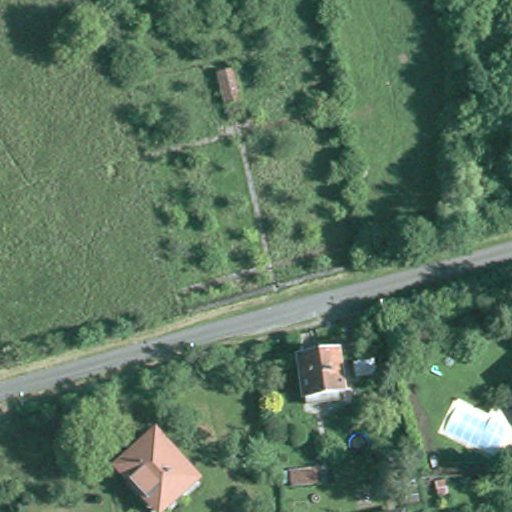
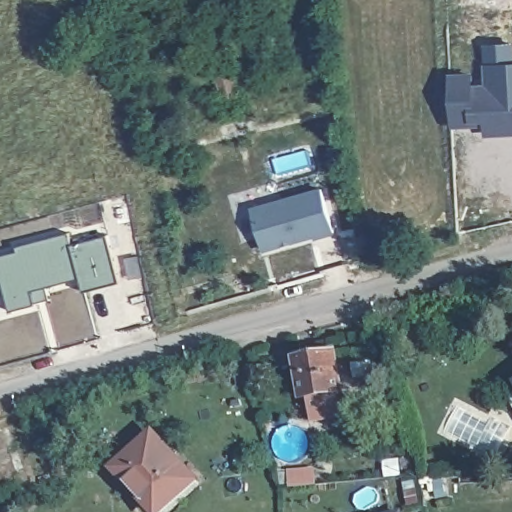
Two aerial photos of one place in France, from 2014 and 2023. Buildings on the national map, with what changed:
new [(454,79),(476,78),(477,88),(492,86),(492,66),(512,65),(512,133),(491,134),(490,127),(478,128),(456,129),(454,79)]
unchanged [(236,68),(251,112),(226,120),(214,75),(236,68)]
new [(328,189),(340,233),(322,238),(321,236),(271,252),(259,208),(328,189)]
new [(19,250),(18,245),(70,232),(74,244),(109,235),(121,282),(86,290),(82,276),(47,285),(50,299),(36,303),(12,309),(5,282),(0,283),(0,255),(19,250)]
unchanged [(304,403),(303,396),(302,396),(296,357),(335,351),(341,391),(337,391),(338,398),(304,403)]
unchanged [(194,479),(161,509),(137,482),(132,486),(115,468),(153,434),(194,479)]
new [(314,469),(315,484),(291,487),(289,472),(314,469)]

